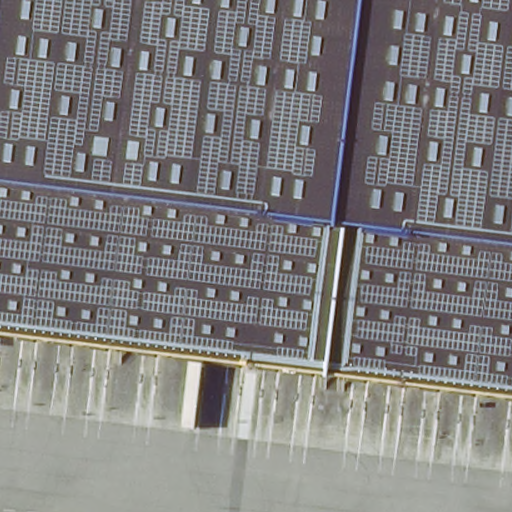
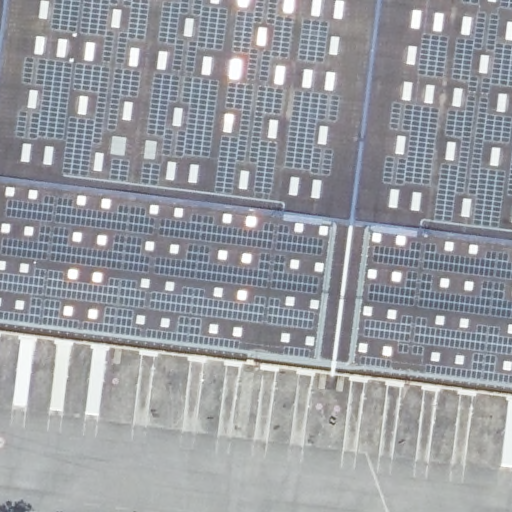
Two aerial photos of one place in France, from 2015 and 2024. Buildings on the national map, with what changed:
unchanged [(0,0),(512,0),(512,397),(0,333),(0,0)]

